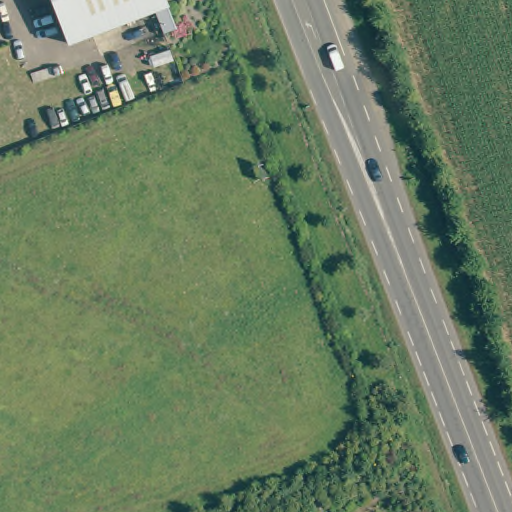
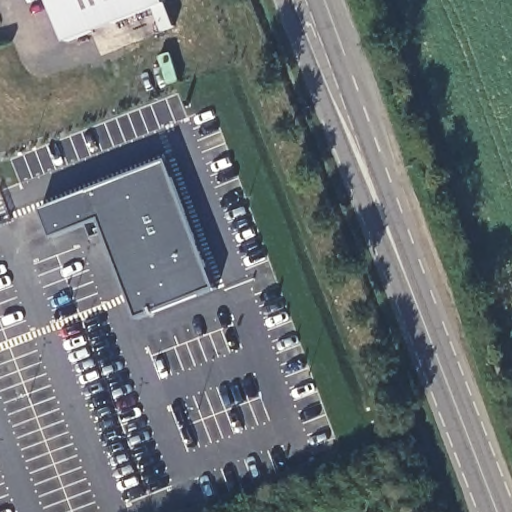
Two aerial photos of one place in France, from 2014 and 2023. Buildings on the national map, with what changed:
unchanged [(153,4),(66,39),(51,0),(166,0),(175,23),(163,28),(153,4)]
new [(97,219),(46,237),(34,209),(164,160),(213,288),(136,319),(97,219)]

